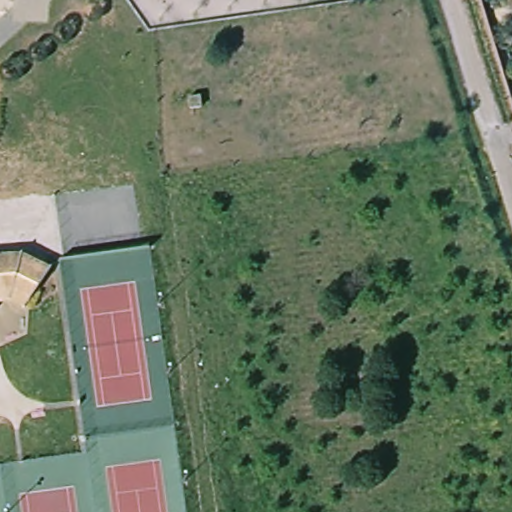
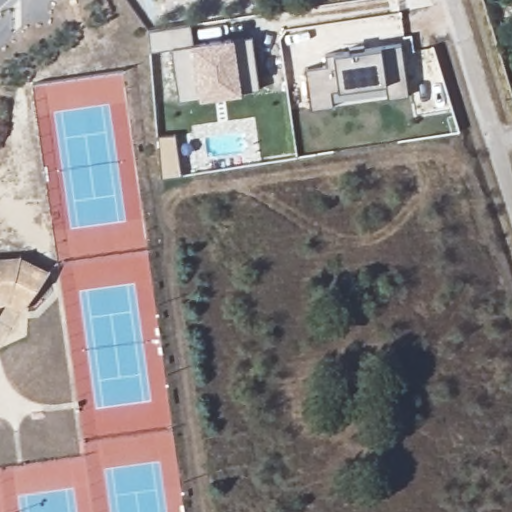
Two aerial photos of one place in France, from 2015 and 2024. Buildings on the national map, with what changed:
new [(195,44),(233,39),(253,36),(255,46),(261,89),(240,92),(239,79),(201,84),(203,98),(179,101),(172,49),(150,52),(149,30),(192,24),(195,44)]
new [(336,107),(313,111),(308,69),(329,66),(328,55),(405,45),(412,97),(390,100),(390,94),(335,102),(336,107)]
unchanged [(22,260),(45,272),(33,301),(15,296),(0,304),(0,266),(22,260)]

